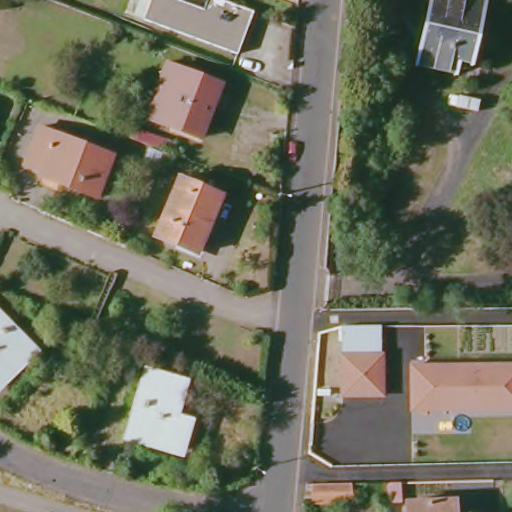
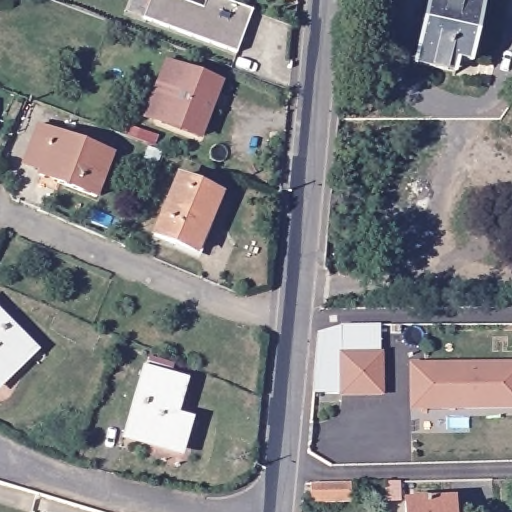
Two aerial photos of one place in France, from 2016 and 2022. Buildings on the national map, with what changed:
unchanged [(235,55),(141,20),(149,0),(171,0),(200,11),(205,0),(215,0),(250,13),(235,55)]
unchanged [(434,0),(471,0),(490,4),(475,71),(462,68),(460,79),(419,71),(434,0)]
unchanged [(195,137),(159,123),(144,117),(165,65),(180,71),(216,85),(195,137)]
unchanged [(32,156),(46,120),(120,148),(104,189),(48,168),(50,164),(32,156)]
unchanged [(186,177),(227,193),(203,252),(163,235),(186,177)]
unchanged [(41,345),(3,382),(0,378),(0,303),(41,345)]
unchanged [(385,350),(385,391),(344,392),(343,351),(385,350)]
unchanged [(408,366),(427,366),(512,366),(512,410),(418,411),(408,411),(408,398),(408,366)]
unchanged [(148,372),(188,385),(177,421),(186,424),(178,451),(129,436),(148,372)]
unchanged [(314,393),(318,394),(334,394),(333,406),(312,406),(314,393)]
unchanged [(310,486),(348,485),(347,502),(310,503),(310,486)]
unchanged [(457,502),(458,512),(411,512),(411,505),(457,502)]

